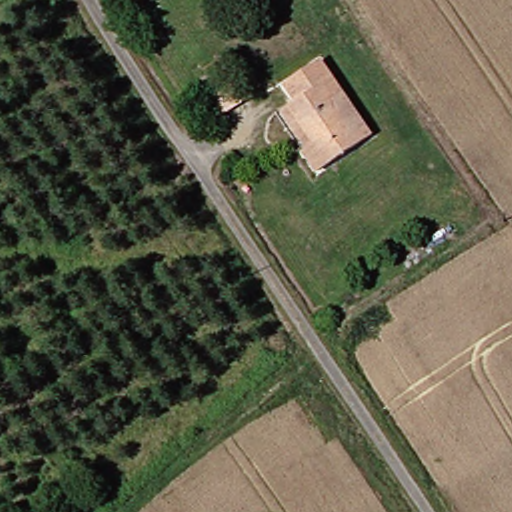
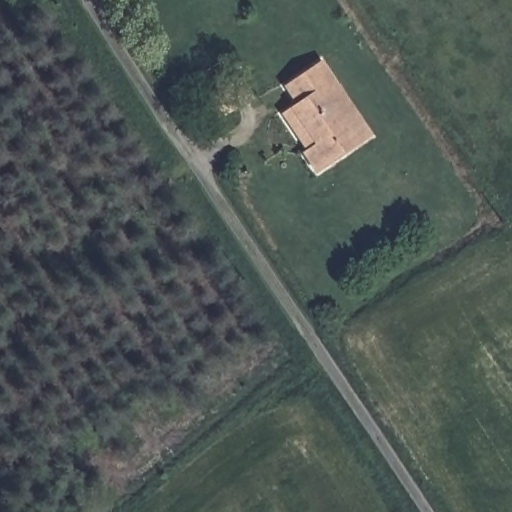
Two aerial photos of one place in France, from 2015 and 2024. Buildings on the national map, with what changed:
unchanged [(286,104),(293,100),(281,80),(316,59),(328,77),(352,114),(363,131),(307,166),(296,148),(301,145),(279,108),(286,104)]

